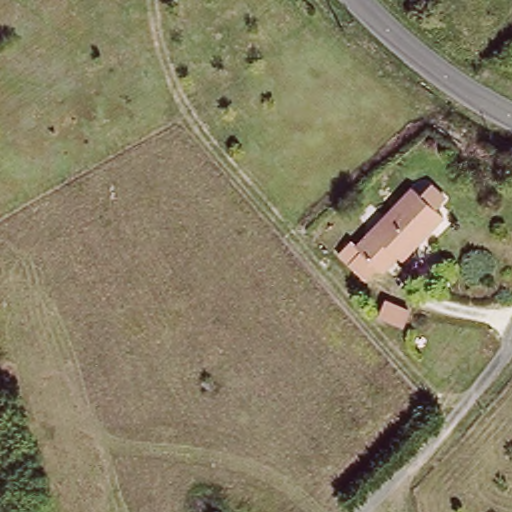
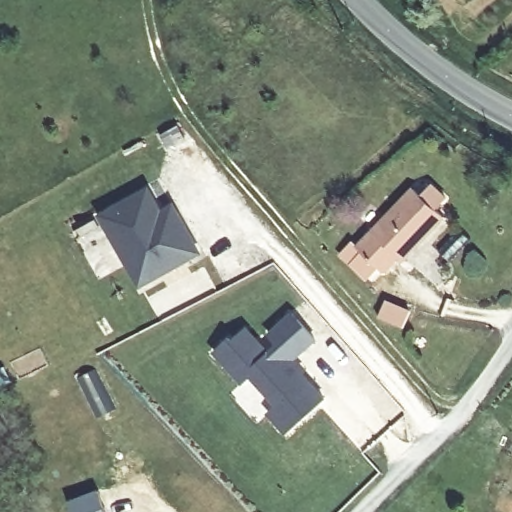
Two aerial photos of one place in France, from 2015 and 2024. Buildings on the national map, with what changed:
new [(96,214),(149,184),(163,208),(173,202),(202,254),(139,288),(96,214)]
unchanged [(386,267),(362,242),(421,186),(431,196),(444,185),(454,196),(442,207),(450,217),(428,237),(409,257),(403,251),(386,267)]
demolished [(425,304),(403,293),(412,276),(433,288),(425,304)]
unchanged [(404,325),(382,315),(391,297),(412,309),(404,325)]
new [(227,340),(230,343),(244,330),(266,354),(276,345),(266,335),(288,313),(312,337),(290,358),(302,370),(297,375),(306,385),(309,382),(324,397),(287,433),(269,413),(277,405),(250,376),(242,384),(213,354),(227,340)]

